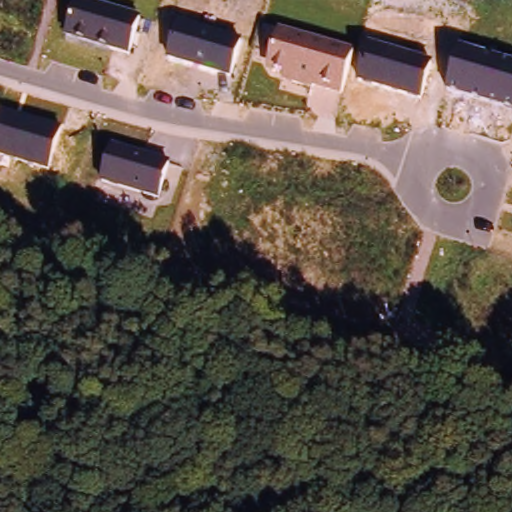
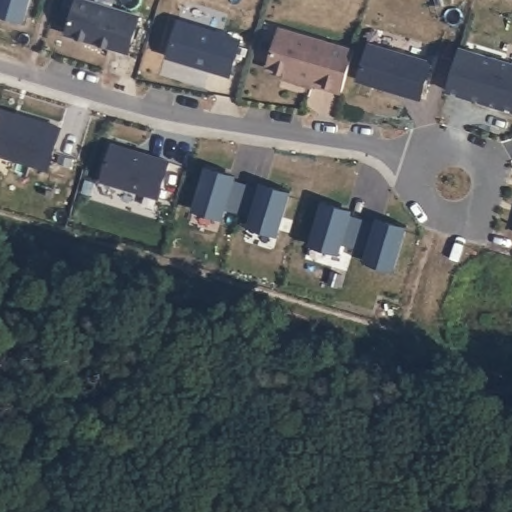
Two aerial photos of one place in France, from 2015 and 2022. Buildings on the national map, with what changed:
new [(29,0),(22,21),(0,15),(0,0),(29,0)]
unchanged [(130,56),(65,34),(76,0),(95,0),(141,14),(130,56)]
unchanged [(242,38),(231,76),(167,56),(179,17),(242,38)]
unchanged [(354,49),(339,94),(265,69),(280,26),(354,49)]
unchanged [(434,62),(422,99),(357,80),(370,43),(434,62)]
unchanged [(461,46),(512,61),(512,110),(445,91),(461,46)]
unchanged [(61,126),(49,168),(0,153),(0,108),(61,126)]
unchanged [(160,198),(100,181),(113,143),(171,160),(160,198)]
new [(206,166),(236,174),(223,218),(193,209),(206,166)]
new [(225,210),(235,180),(247,184),(260,188),(252,218),(238,214),(225,210)]
new [(262,182),(292,191),(279,235),(249,226),(262,182)]
new [(322,200),(352,209),(338,253),(308,244),(322,200)]
new [(354,248),(341,244),(350,214),(363,218),(375,222),(367,252),(354,248)]
new [(377,217),(407,225),(394,269),(364,260),(367,252),(377,217)]

